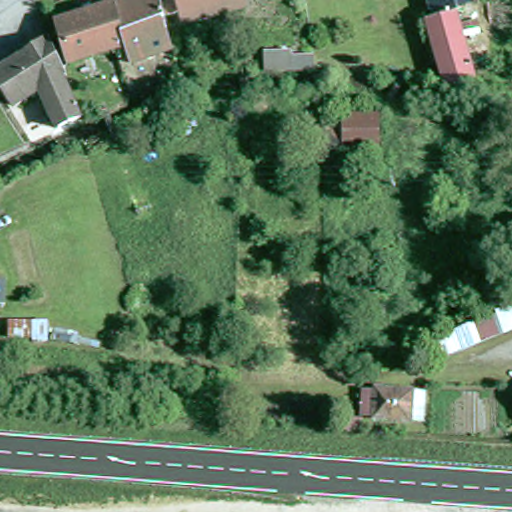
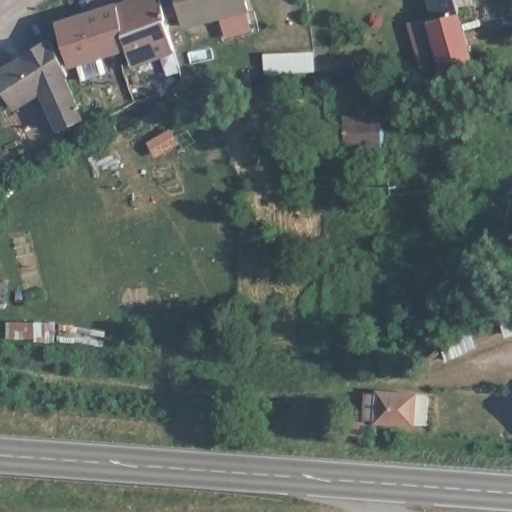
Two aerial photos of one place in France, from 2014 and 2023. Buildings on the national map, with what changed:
unchanged [(130,65),(126,50),(114,7),(134,0),(158,0),(165,20),(174,51),(130,65)]
unchanged [(180,27),(177,16),(165,20),(158,0),(240,0),(242,11),(180,27)]
unchanged [(429,25),(435,22),(429,0),(456,0),(475,77),(477,81),(447,91),(429,25)]
unchanged [(72,68),(58,26),(114,7),(126,50),(115,54),(72,68)]
unchanged [(62,73),(60,75),(78,114),(56,124),(41,90),(16,104),(0,78),(0,69),(41,42),(62,73)]
unchanged [(37,337),(15,336),(17,322),(37,323),(37,337)]
unchanged [(412,425),(404,424),(365,421),(367,392),(405,396),(415,397),(412,425)]

